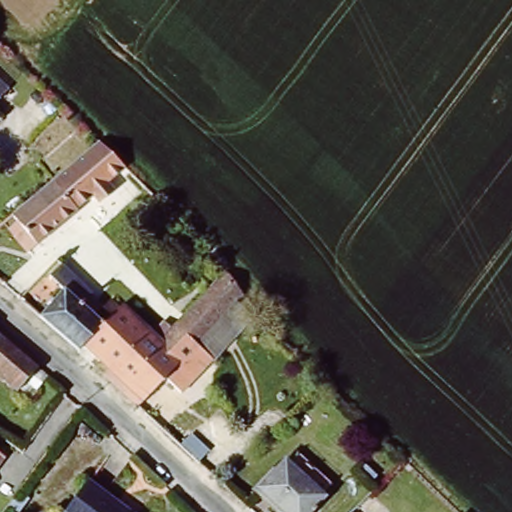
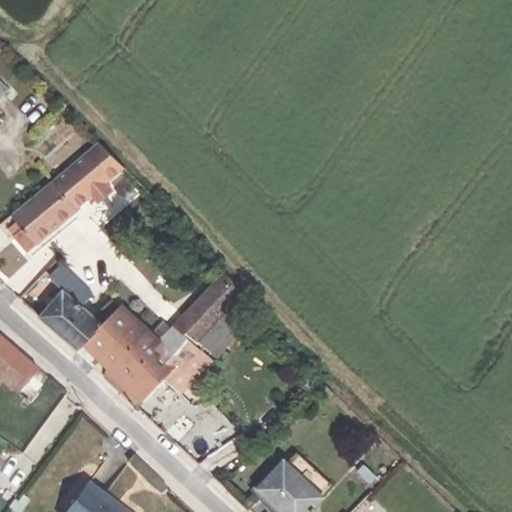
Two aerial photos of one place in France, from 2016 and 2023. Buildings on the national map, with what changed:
unchanged [(0,98),(0,86),(6,92),(0,98)]
unchanged [(85,156),(87,153),(102,140),(128,166),(111,182),(114,185),(118,190),(103,203),(99,199),(96,195),(30,252),(18,239),(12,232),(20,224),(15,217),(62,175),(85,156)]
unchanged [(161,340),(174,327),(231,270),(250,293),(264,309),(183,393),(167,377),(145,399),(105,361),(88,345),(80,353),(44,320),(70,291),(62,285),(73,272),(97,295),(87,305),(98,316),(114,300),(123,310),(126,307),(161,340)]
unchanged [(26,393),(0,371),(0,334),(45,371),(26,393)]
unchanged [(0,463),(0,452),(5,455),(0,463)]
unchanged [(287,457),(325,500),(312,512),(284,512),(259,485),(287,457)]
unchanged [(88,488),(121,512),(72,512),(88,488)]
unchanged [(342,511),(342,512),(341,512),(342,511)]

